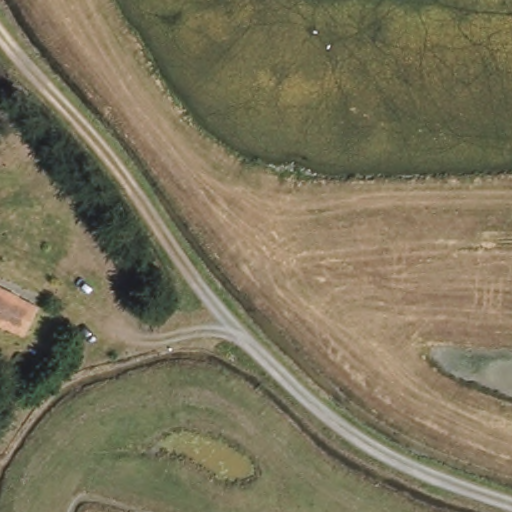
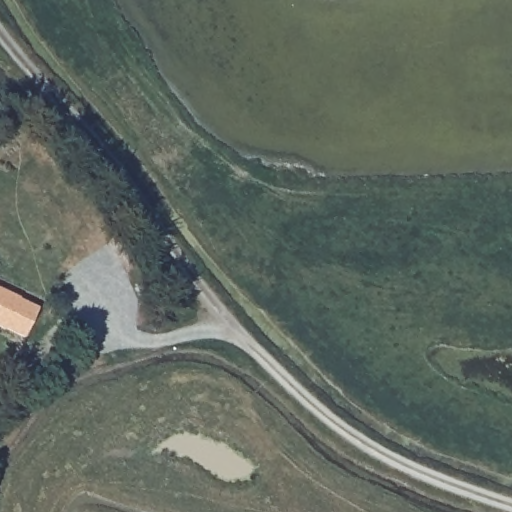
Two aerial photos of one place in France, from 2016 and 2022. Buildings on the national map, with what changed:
unchanged [(25,341),(0,329),(0,289),(38,306),(25,341)]

